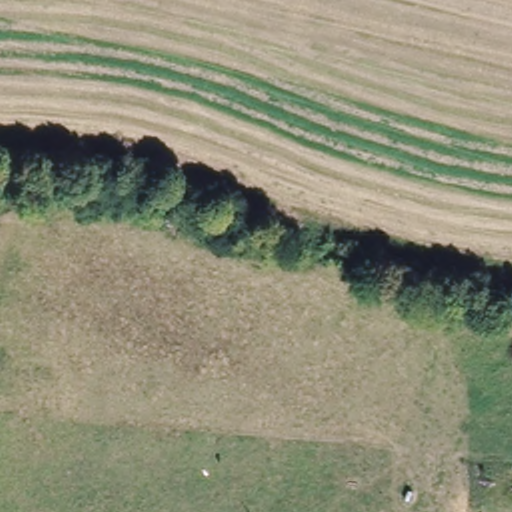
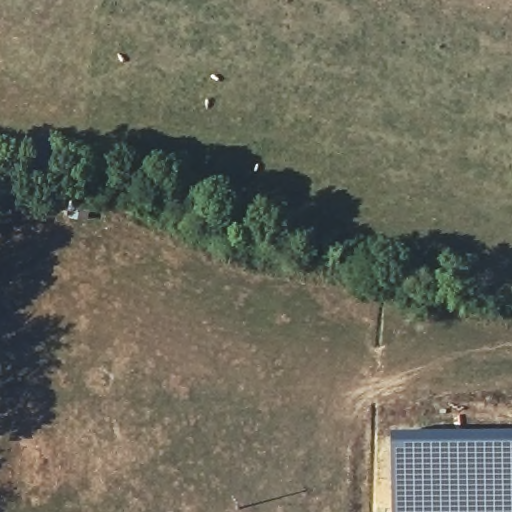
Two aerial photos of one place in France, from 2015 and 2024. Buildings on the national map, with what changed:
new [(418,435),(437,441),(442,442),(498,442),(499,438),(503,438),(512,437),(512,512),(391,512),(392,436),(418,435)]

